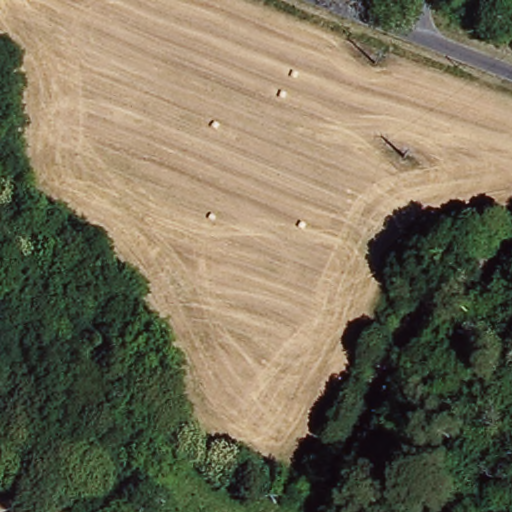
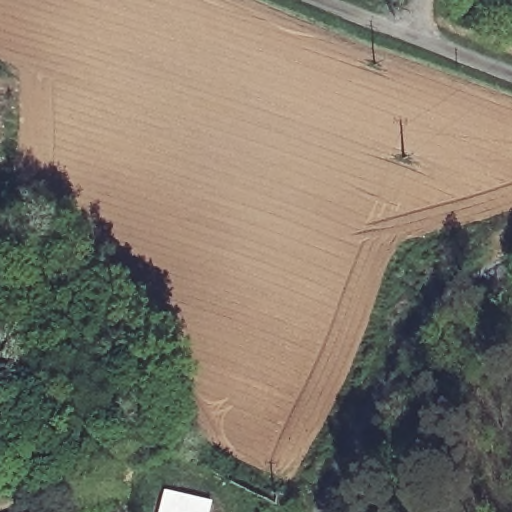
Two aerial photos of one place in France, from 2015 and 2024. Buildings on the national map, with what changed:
new [(162,488),(211,500),(208,512),(156,512),(162,488)]

